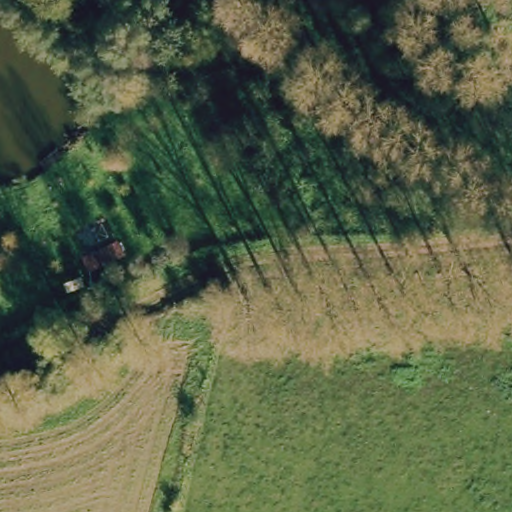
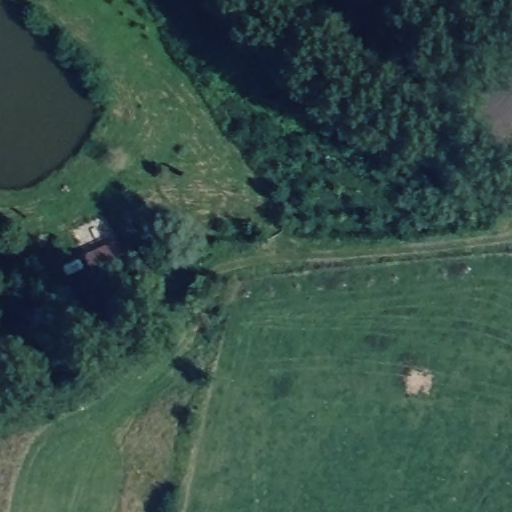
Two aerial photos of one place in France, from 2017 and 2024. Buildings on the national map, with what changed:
unchanged [(148,258),(97,285),(82,257),(135,231),(148,258)]

